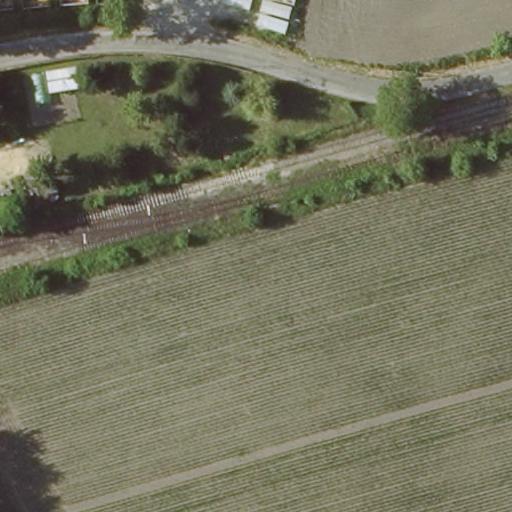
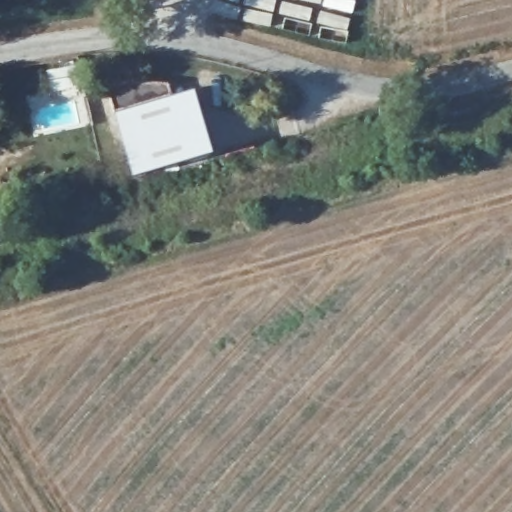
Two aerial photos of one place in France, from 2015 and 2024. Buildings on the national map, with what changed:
unchanged [(57,62),(83,59),(85,77),(59,81),(57,62)]
new [(109,86),(127,82),(151,82),(170,83),(174,96),(195,90),(213,152),(135,176),(109,86)]

